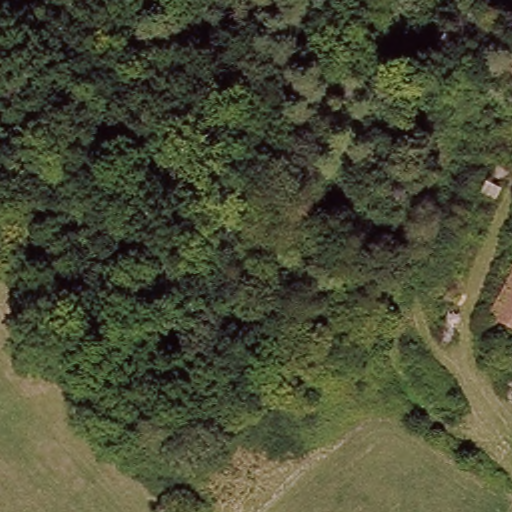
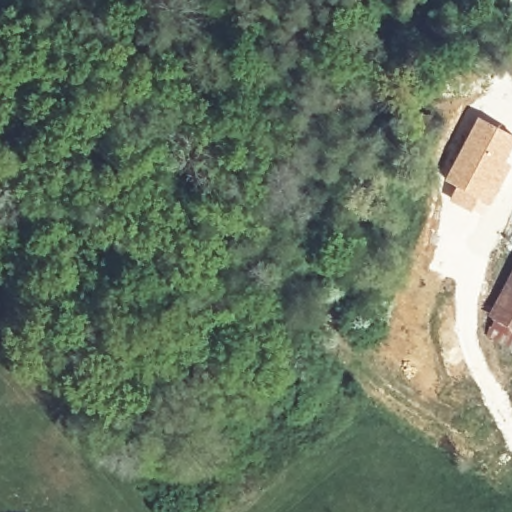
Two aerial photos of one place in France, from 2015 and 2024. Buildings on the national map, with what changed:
unchanged [(512,59),(512,75),(505,69),(512,59)]
new [(482,119),(512,136),(512,143),(500,167),(506,171),(490,201),(449,180),(482,119)]
unchanged [(503,295),(512,280),(512,323),(494,312),(503,295)]

